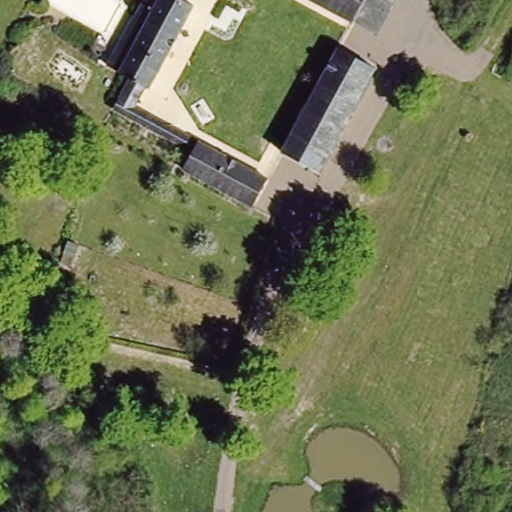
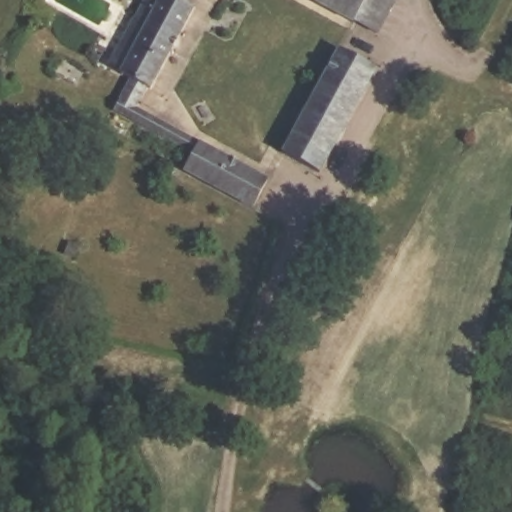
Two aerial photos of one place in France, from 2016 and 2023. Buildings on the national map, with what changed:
unchanged [(136,115),(116,103),(117,92),(132,65),(123,59),(151,17),(142,9),(149,0),(154,0),(161,2),(163,0),(190,0),(199,8),(143,102),(136,115)]
unchanged [(309,0),(396,0),(380,36),(352,24),(309,0)]
unchanged [(328,72),(342,50),(379,77),(366,97),(328,72)]
unchanged [(366,97),(318,169),(285,145),(328,72),(366,97)]
unchanged [(136,115),(143,102),(270,177),(253,206),(181,165),(187,147),(136,115)]

